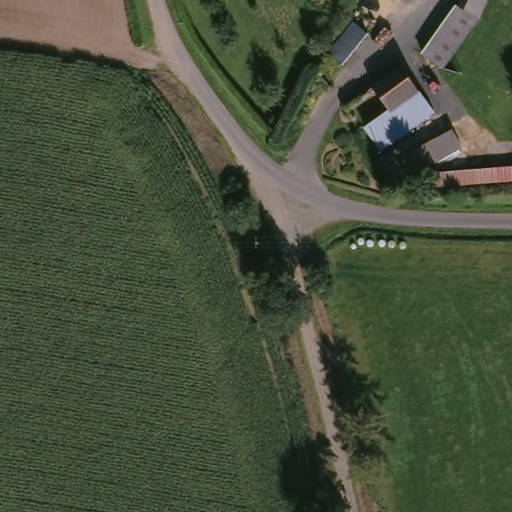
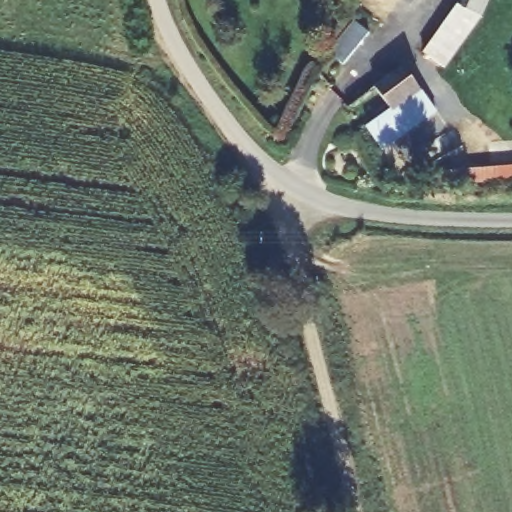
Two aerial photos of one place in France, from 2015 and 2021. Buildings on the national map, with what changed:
unchanged [(447,64),(428,49),(460,9),(466,0),(494,0),(486,18),(447,64)]
unchanged [(345,73),(326,60),(356,24),(371,37),(345,73)]
unchanged [(368,133),(392,114),(374,89),(401,70),(435,118),(383,154),(368,133)]
unchanged [(462,148),(423,172),(412,155),(452,133),(462,148)]

